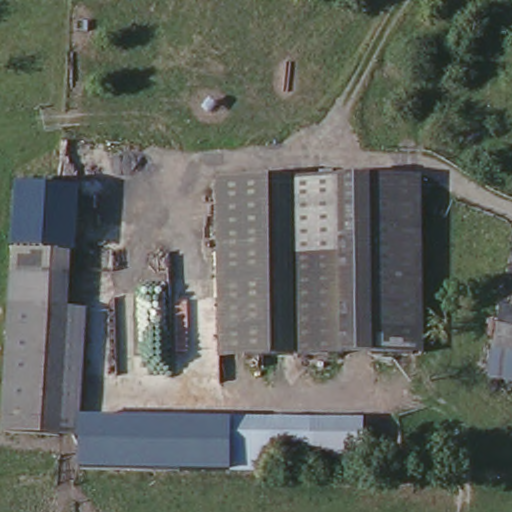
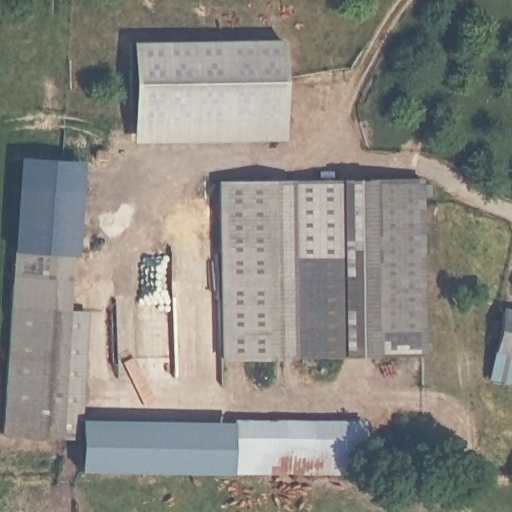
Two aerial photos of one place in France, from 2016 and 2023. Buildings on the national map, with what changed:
new [(129,42),(284,40),(285,142),(129,142),(129,42)]
unchanged [(420,173),(423,349),(292,351),(289,175),(420,173)]
unchanged [(221,353),(215,181),(289,175),(292,351),(221,353)]
unchanged [(76,187),(73,255),(13,252),(15,184),(76,187)]
demolished [(113,211),(115,199),(135,202),(134,215),(130,215),(124,254),(72,249),(76,207),(113,211)]
unchanged [(73,255),(70,311),(88,312),(84,419),(233,422),(366,422),(366,467),(312,466),(311,476),(232,475),(79,472),(80,438),(64,438),(3,432),(13,252),(73,255)]
unchanged [(490,378),(501,311),(512,312),(512,382),(490,378)]

